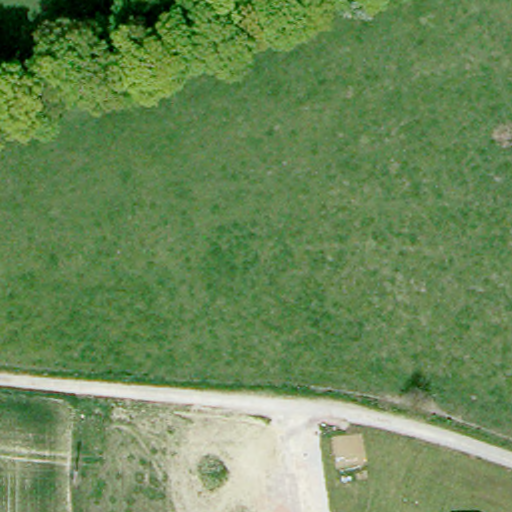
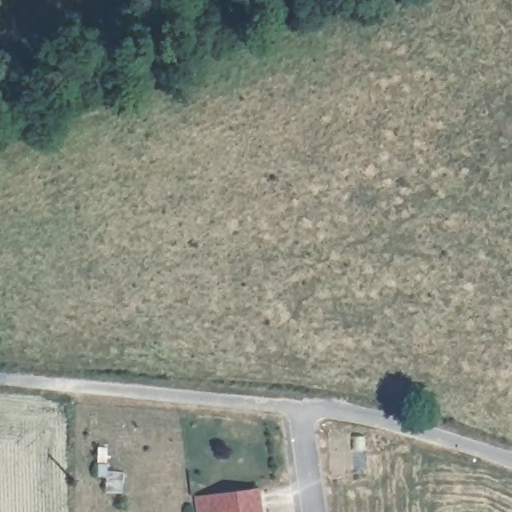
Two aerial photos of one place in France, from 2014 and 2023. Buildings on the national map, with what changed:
new [(258,488),(261,512),(197,512),(196,496),(258,488)]

